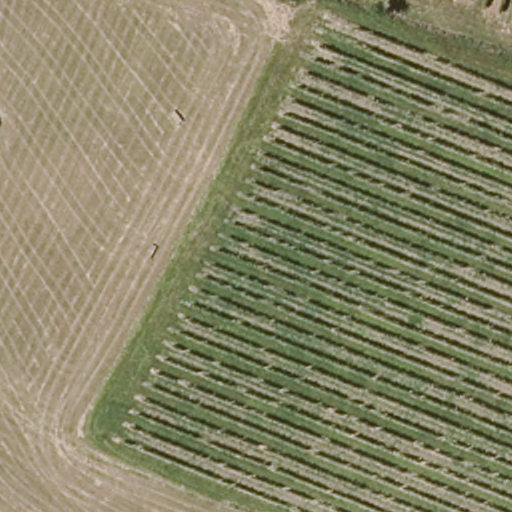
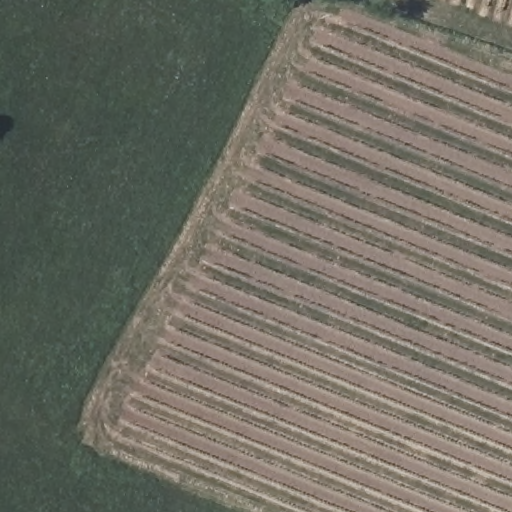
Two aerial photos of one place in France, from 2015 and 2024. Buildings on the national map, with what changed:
[]

